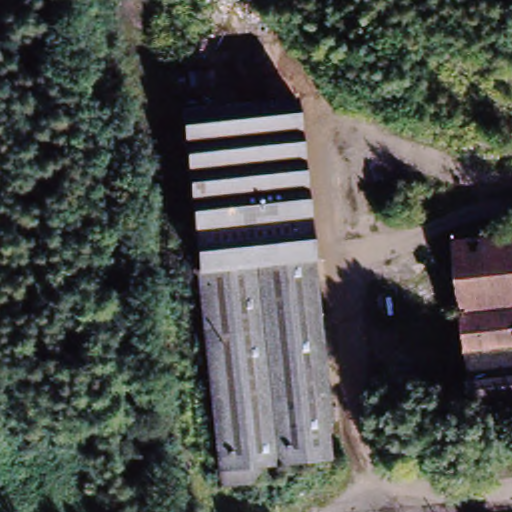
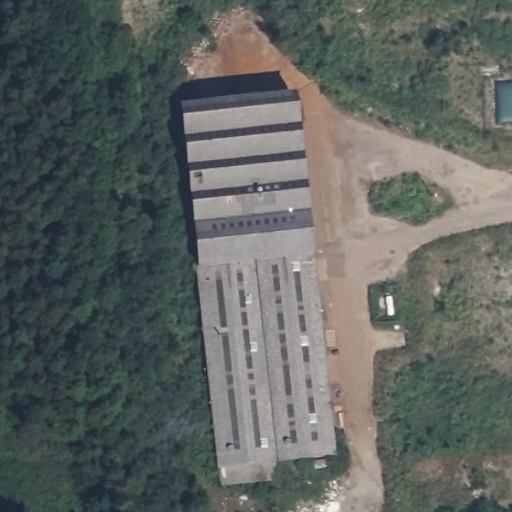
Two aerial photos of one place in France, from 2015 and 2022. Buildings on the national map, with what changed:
unchanged [(173,112),(291,98),(293,110),(304,218),(309,257),(191,271),(173,112)]
demolished [(474,424),(454,245),(512,239),(512,420),(474,424)]
unchanged [(269,459),(269,464),(213,471),(191,271),(309,257),(329,443),(295,446),(296,456),(269,459)]

